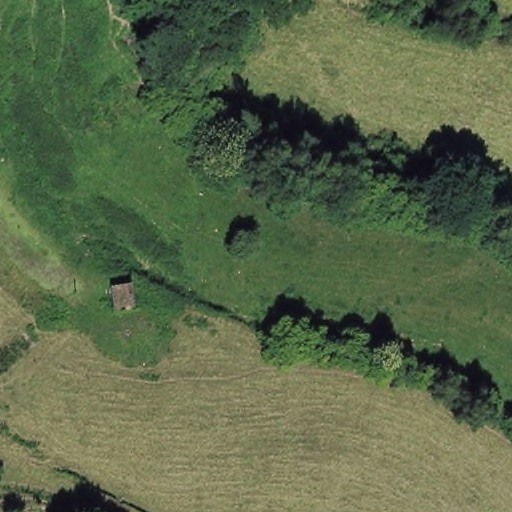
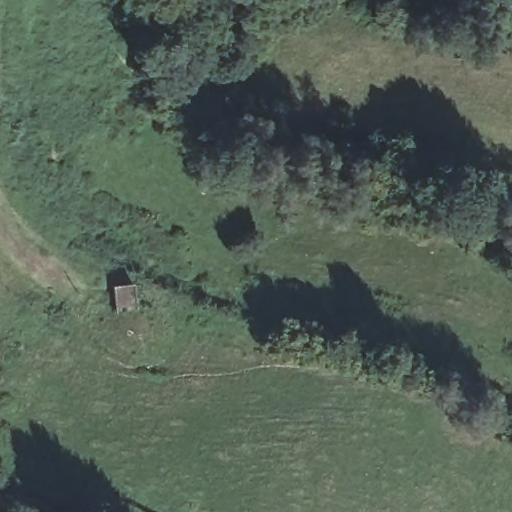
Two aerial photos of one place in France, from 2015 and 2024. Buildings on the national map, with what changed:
unchanged [(138,305),(117,306),(114,281),(136,278),(138,305)]

